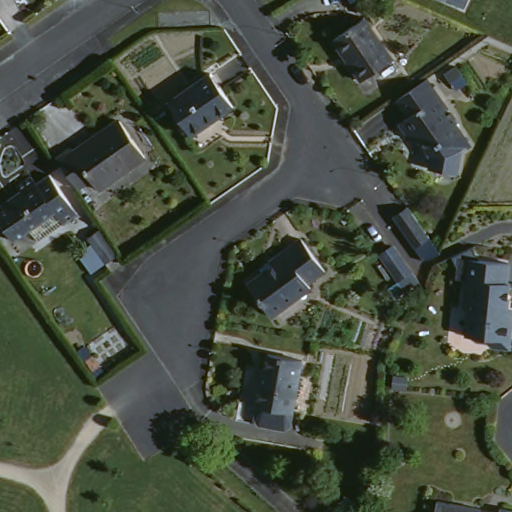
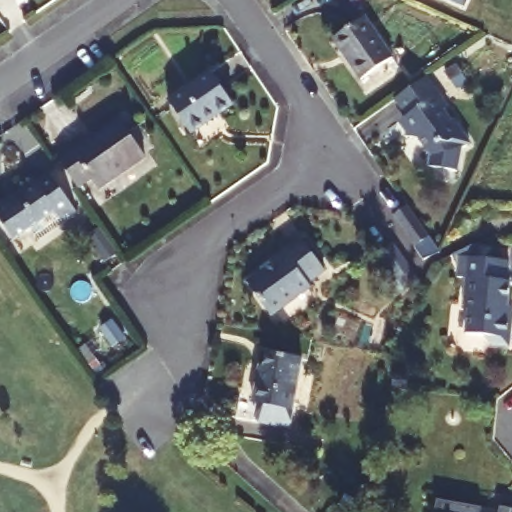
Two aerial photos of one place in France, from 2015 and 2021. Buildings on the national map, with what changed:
unchanged [(435,0),(445,0),(443,4),(435,0)]
unchanged [(334,40),(364,20),(393,60),(363,81),(334,40)]
unchanged [(132,50),(143,43),(155,60),(144,68),(132,50)]
unchanged [(427,78),(447,109),(441,115),(448,124),(452,121),(459,131),(447,140),(439,140),(422,151),(414,141),(401,140),(406,119),(394,101),(427,78)]
unchanged [(210,79),(234,109),(193,138),(170,106),(210,79)]
unchanged [(64,162),(76,154),(79,158),(97,146),(98,148),(125,131),(143,154),(85,193),(64,162)]
unchanged [(30,233),(13,245),(0,227),(0,211),(22,195),(18,190),(28,182),(32,188),(42,180),(71,220),(58,230),(38,245),(30,233)]
unchanged [(407,208),(400,197),(414,187),(435,218),(446,234),(433,246),(421,228),(407,208)]
unchanged [(130,242),(120,250),(102,227),(111,220),(130,242)]
unchanged [(406,260),(389,236),(401,227),(418,252),(406,260)]
unchanged [(326,277),(266,320),(245,286),(302,249),(326,277)]
unchanged [(511,287),(507,325),(512,331),(512,335),(509,352),(491,350),(485,341),(467,340),(470,316),(466,311),(469,284),(460,283),(461,275),(452,260),(473,250),(481,263),(511,267),(509,287),(511,287)]
unchanged [(250,403),(252,376),(262,377),(263,358),(296,361),(293,406),(250,403)]
unchanged [(479,510),(479,512),(433,512),(435,501),(479,510)]
unchanged [(503,512),(498,512),(498,511),(503,512)]

